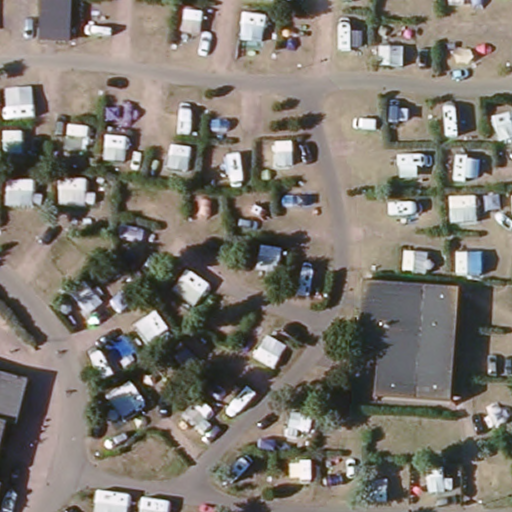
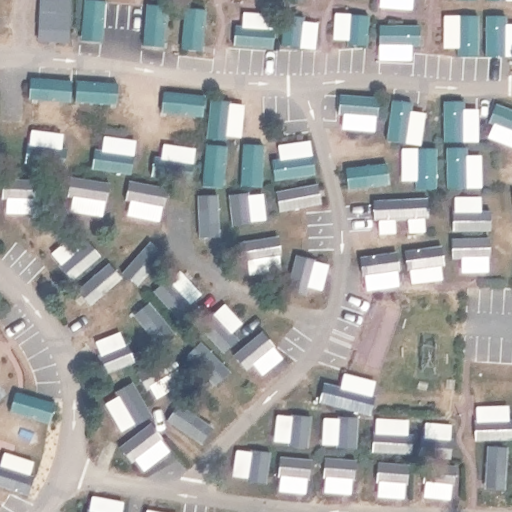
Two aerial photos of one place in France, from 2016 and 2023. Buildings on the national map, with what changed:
demolished [(386,347),(374,347),(376,327),(368,327),(370,296),(454,302),(447,402),(383,397),(386,347)]
demolished [(14,422),(5,421),(0,442),(0,386),(22,392),(14,422)]

